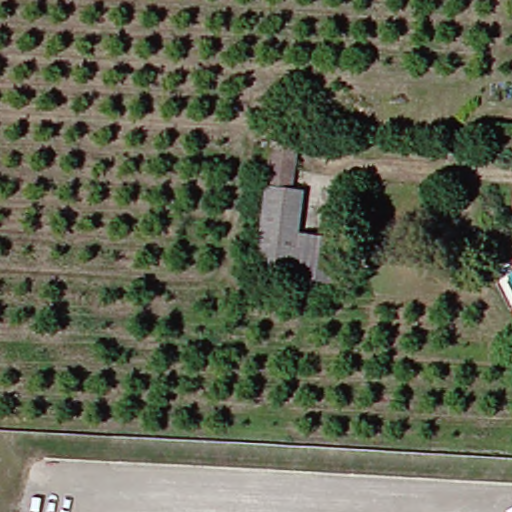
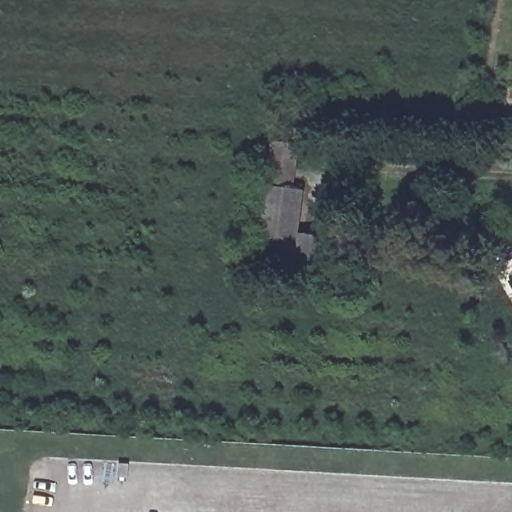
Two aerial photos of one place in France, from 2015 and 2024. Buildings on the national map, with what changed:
unchanged [(293,141),(287,194),(297,196),(287,283),(247,279),(265,137),(293,141)]

